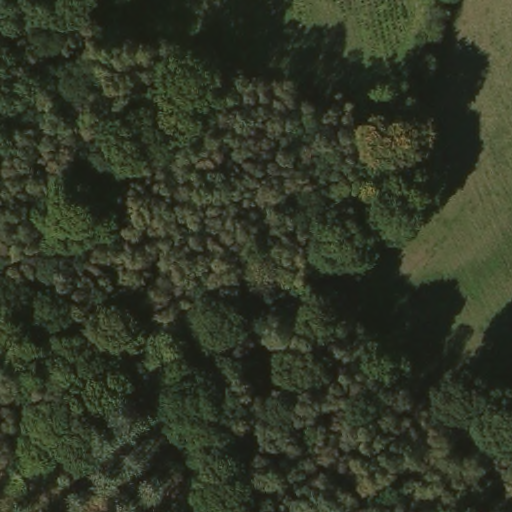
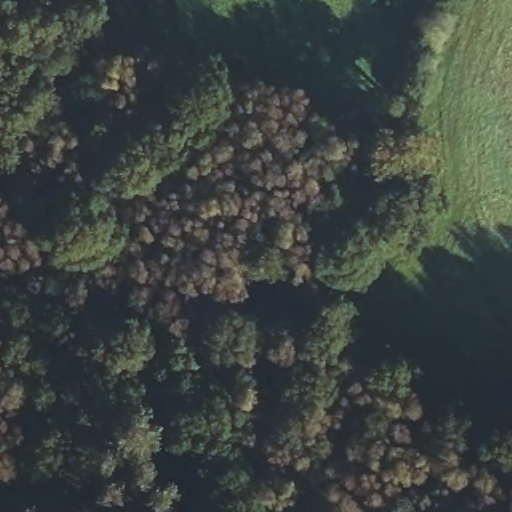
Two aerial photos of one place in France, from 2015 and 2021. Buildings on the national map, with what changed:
[]

